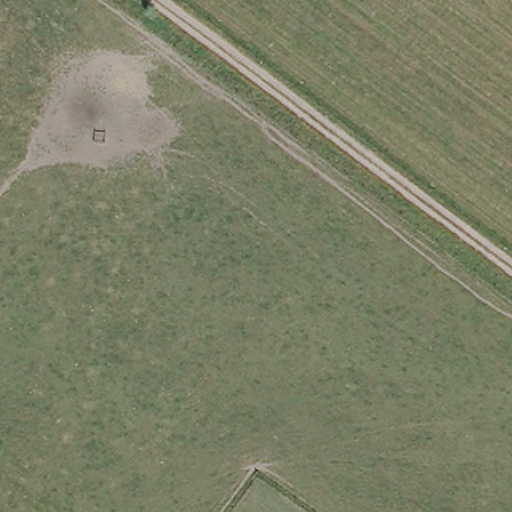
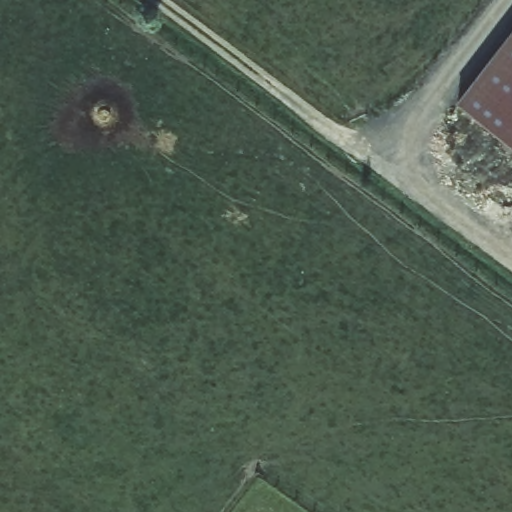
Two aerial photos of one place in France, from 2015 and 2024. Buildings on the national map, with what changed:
new [(512,32),(512,144),(458,102),(512,32)]

